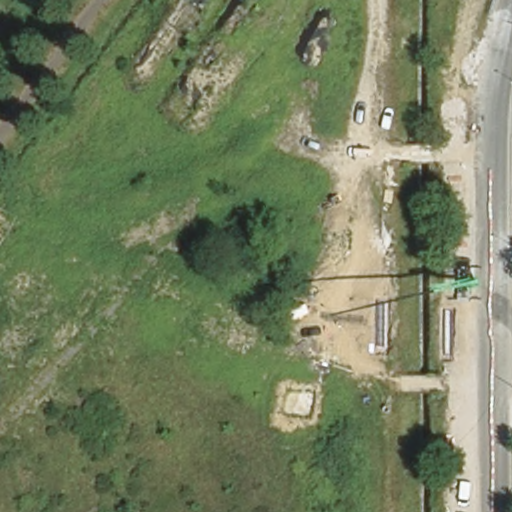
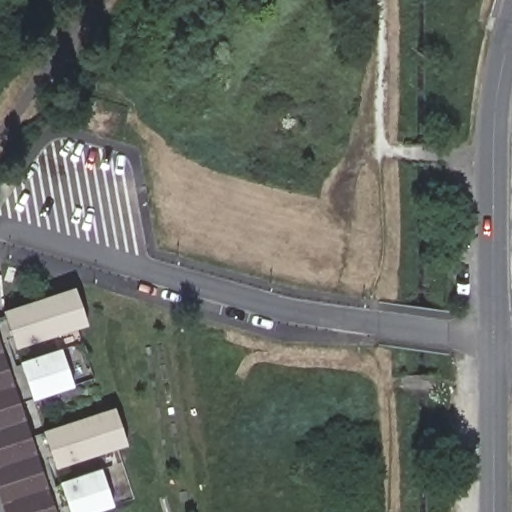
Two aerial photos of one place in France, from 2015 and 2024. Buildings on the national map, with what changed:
new [(19,350),(5,310),(74,286),(87,326),(19,350)]
new [(0,343),(56,512),(5,512),(0,496),(0,343)]
new [(35,400),(21,362),(60,349),(73,387),(35,400)]
new [(57,469),(45,430),(115,407),(128,445),(57,469)]
new [(96,512),(71,512),(61,482),(101,468),(113,506),(96,512)]

